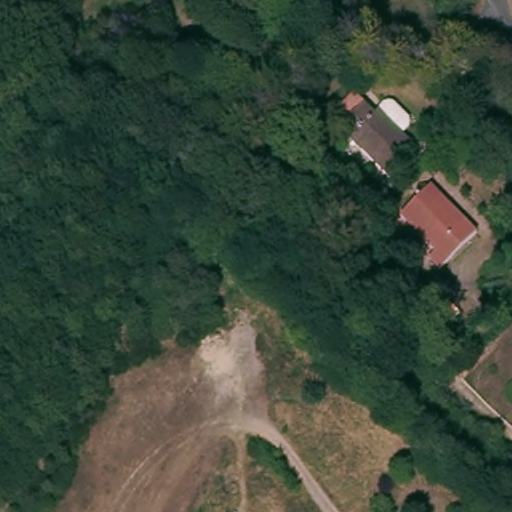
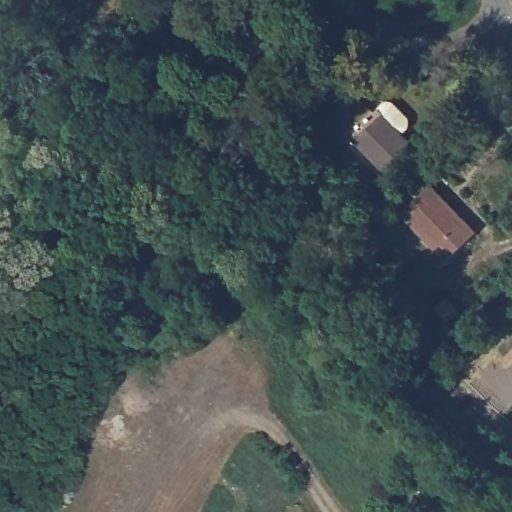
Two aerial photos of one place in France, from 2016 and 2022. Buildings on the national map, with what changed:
unchanged [(391,115),(418,140),(412,146),(424,157),(402,181),(352,134),(342,124),(366,100),(376,110),(387,120),(391,115)]
unchanged [(436,184),(485,232),(448,268),(435,257),(443,248),(405,215),(436,184)]
unchanged [(466,297),(444,321),(430,307),(453,285),(466,297)]

